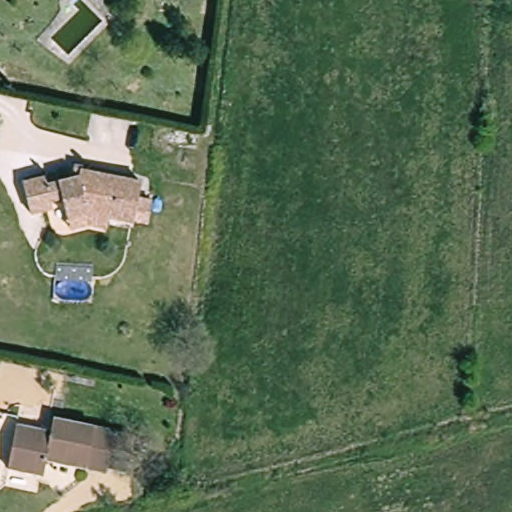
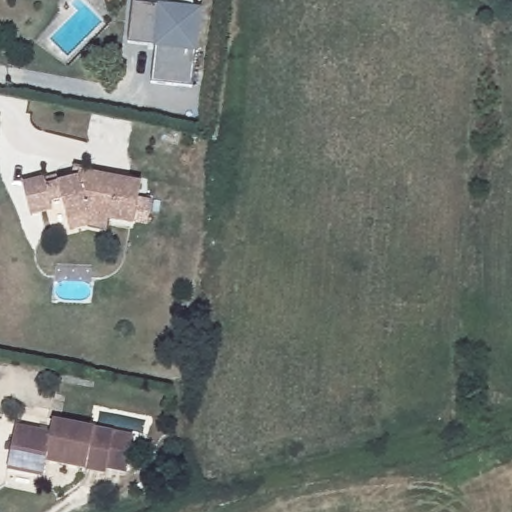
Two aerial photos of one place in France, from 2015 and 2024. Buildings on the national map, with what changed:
unchanged [(107,0),(110,0),(108,1),(107,0)]
new [(134,0),(157,3),(202,8),(197,52),(193,86),(152,83),(155,45),(129,43),(134,0)]
unchanged [(93,226),(74,230),(72,221),(67,200),(55,202),(57,210),(36,215),(27,184),(49,179),(51,186),(83,179),(84,172),(146,184),(138,224),(113,219),(111,229),(93,226)]
unchanged [(130,472),(111,468),(110,473),(50,462),(47,476),(11,469),(20,426),(54,433),(57,419),(138,436),(130,472)]

